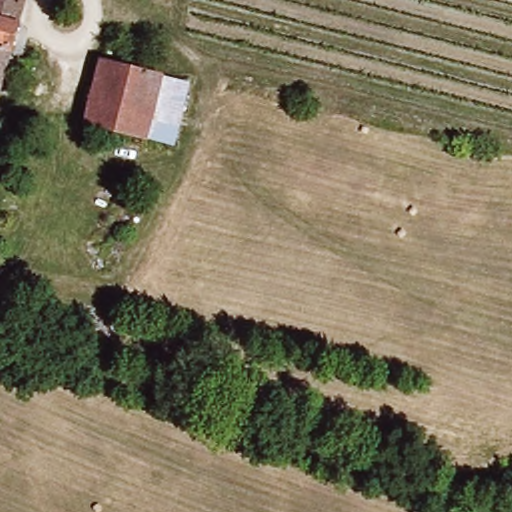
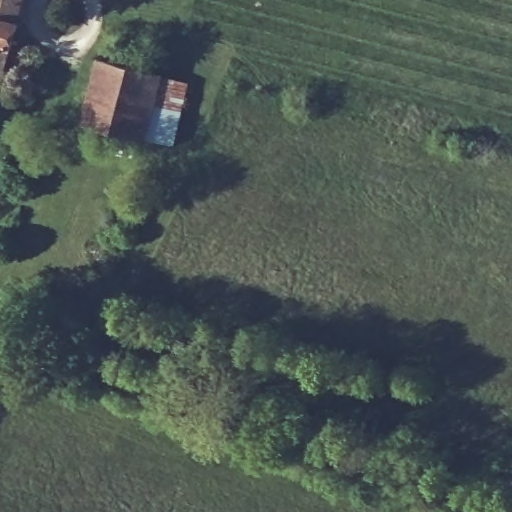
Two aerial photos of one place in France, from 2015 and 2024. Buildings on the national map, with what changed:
unchanged [(0,75),(0,0),(20,0),(0,75)]
unchanged [(93,125),(106,65),(171,81),(158,140),(93,125)]

